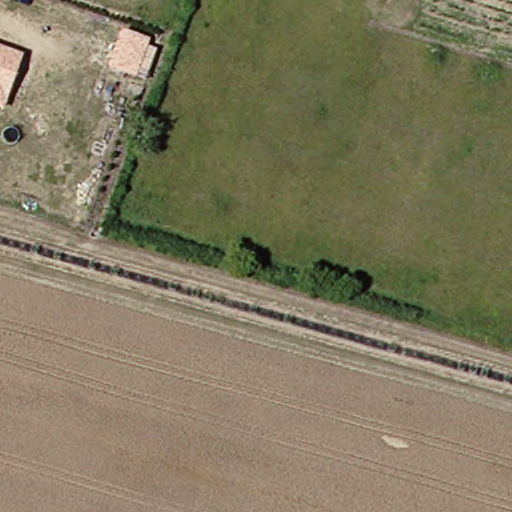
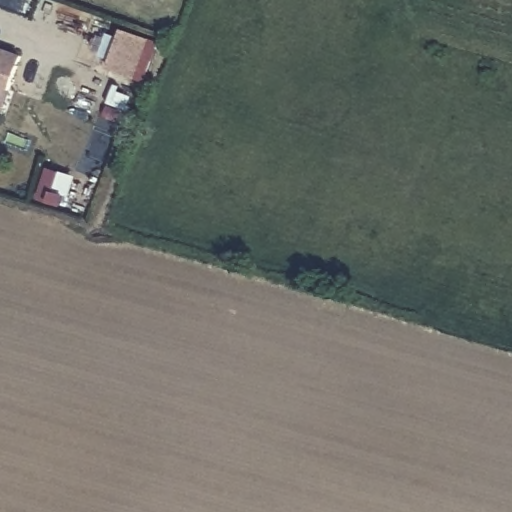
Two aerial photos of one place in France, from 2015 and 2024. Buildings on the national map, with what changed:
unchanged [(135,79),(109,68),(122,31),(149,41),(135,79)]
unchanged [(0,109),(0,49),(4,51),(23,59),(10,93),(4,110),(0,109)]

